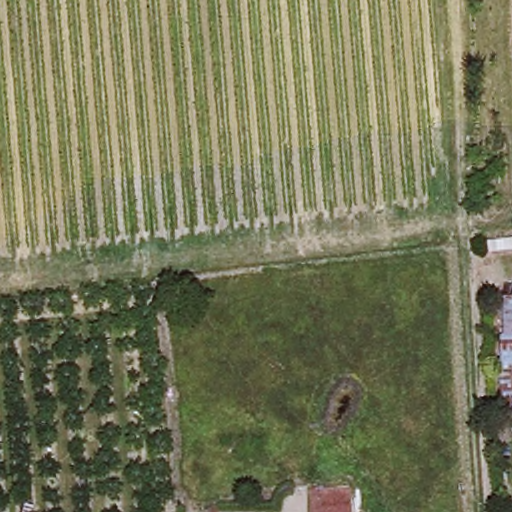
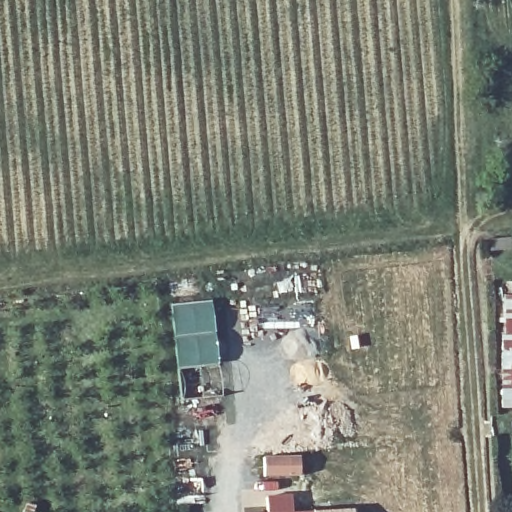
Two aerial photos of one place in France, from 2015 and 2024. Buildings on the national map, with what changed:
unchanged [(505,295),(512,295),(512,407),(505,407),(505,295)]
new [(211,300),(218,365),(176,370),(169,304),(211,300)]
new [(301,454),(302,476),(263,477),(263,455),(301,454)]
unchanged [(353,512),(313,512),(313,510),(353,508),(353,512)]

